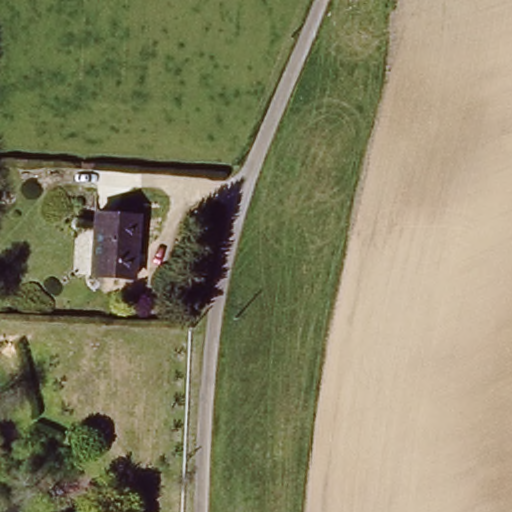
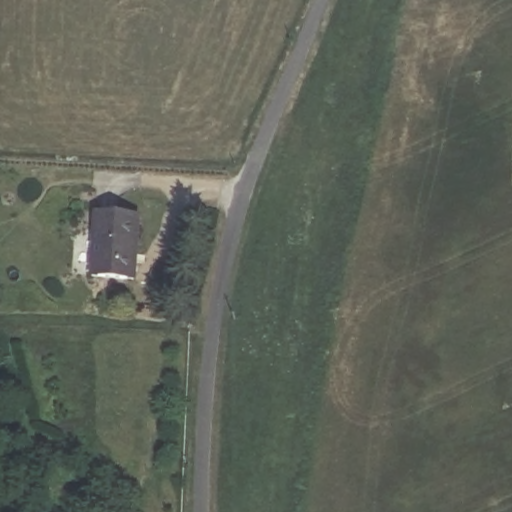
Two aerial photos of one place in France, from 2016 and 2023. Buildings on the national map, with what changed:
unchanged [(93,210),(133,210),(133,270),(93,270),(93,210)]
unchanged [(78,499),(79,512),(50,512),(49,503),(78,499)]

